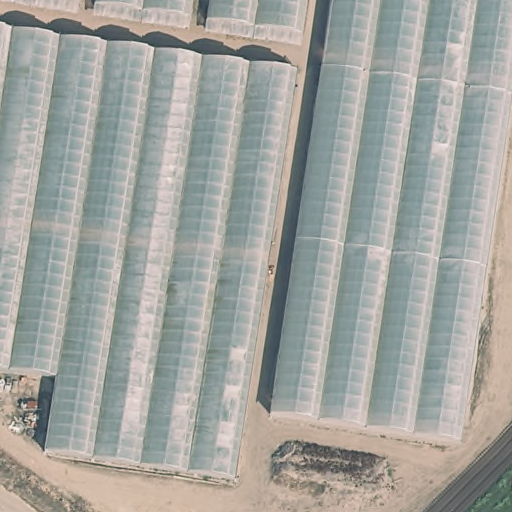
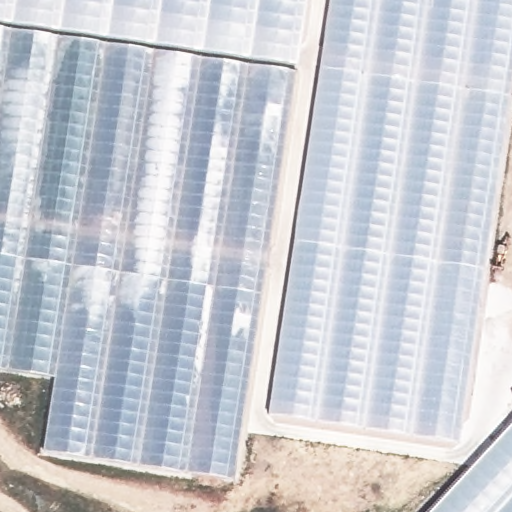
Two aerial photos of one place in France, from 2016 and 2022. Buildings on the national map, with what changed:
unchanged [(47,0),(81,0),(80,5),(47,0)]
unchanged [(101,10),(103,0),(196,0),(192,25),(101,10)]
unchanged [(208,22),(212,0),(309,0),(303,37),(208,22)]
unchanged [(269,425),(332,0),(512,0),(512,120),(465,452),(269,425)]
unchanged [(41,462),(54,388),(0,380),(0,30),(298,74),(239,485),(41,462)]
new [(512,424),(512,512),(430,512),(512,424)]

